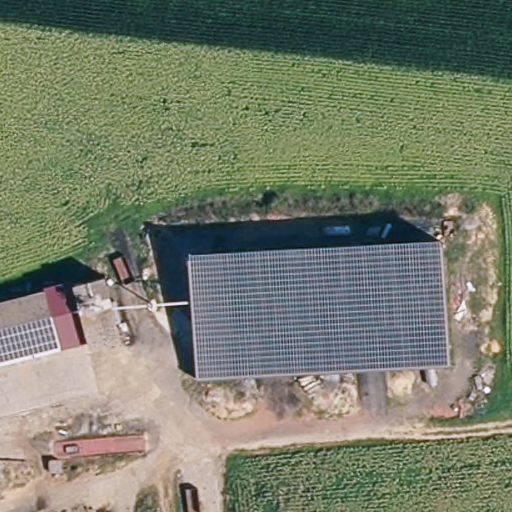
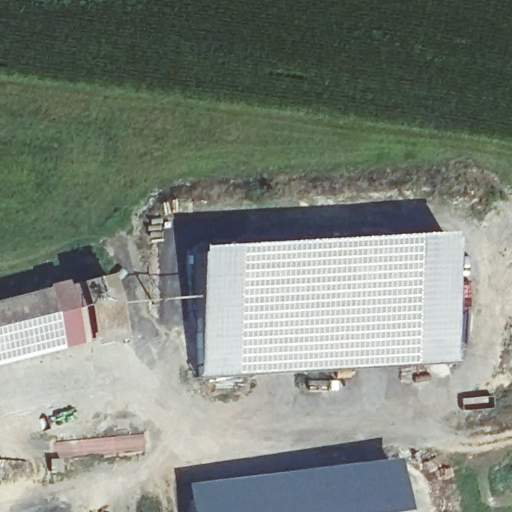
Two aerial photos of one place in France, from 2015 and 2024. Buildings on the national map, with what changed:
unchanged [(454,366),(203,380),(195,276),(194,256),(198,255),(448,241),(454,366)]
unchanged [(112,327),(82,335),(69,284),(100,276),(112,327)]
unchanged [(0,356),(0,301),(69,284),(82,335),(0,356)]
new [(402,512),(191,512),(188,487),(397,461),(402,512)]

